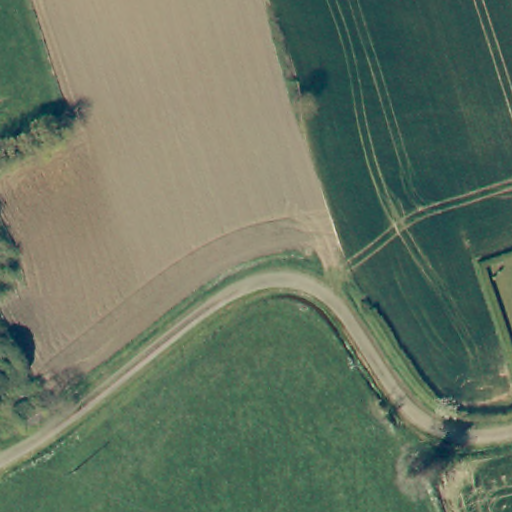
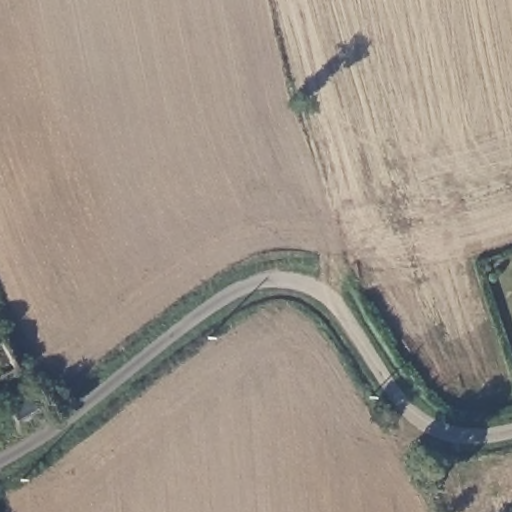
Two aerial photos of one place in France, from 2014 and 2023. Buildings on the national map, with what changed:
unchanged [(19,429),(9,409),(14,407),(5,390),(23,381),(42,417),(19,429)]

